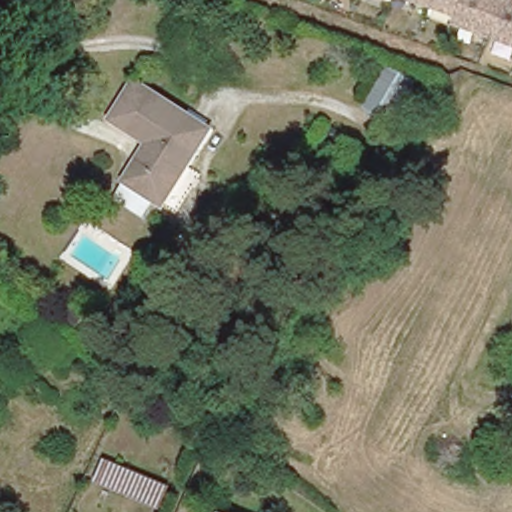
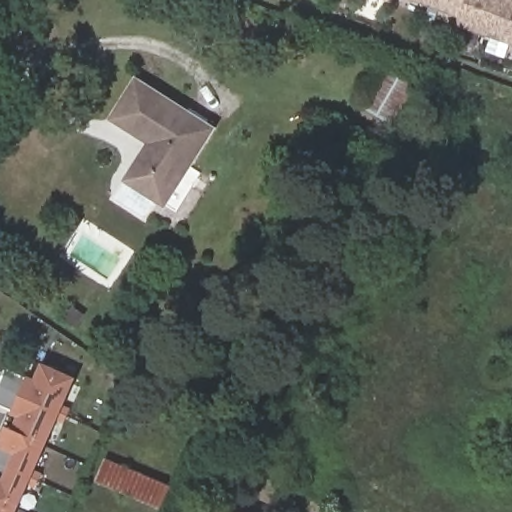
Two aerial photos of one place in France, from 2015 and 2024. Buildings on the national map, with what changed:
unchanged [(415,83),(394,120),(365,104),(386,66),(415,83)]
unchanged [(214,123),(165,199),(155,193),(142,213),(113,194),(149,137),(111,112),(136,73),(214,123)]
new [(13,512),(0,512),(0,442),(6,445),(18,414),(0,406),(0,380),(6,366),(34,379),(41,365),(72,379),(13,512)]
unchanged [(170,485),(161,505),(101,479),(109,460),(170,485)]
unchanged [(229,507),(240,512),(227,512),(229,507)]

